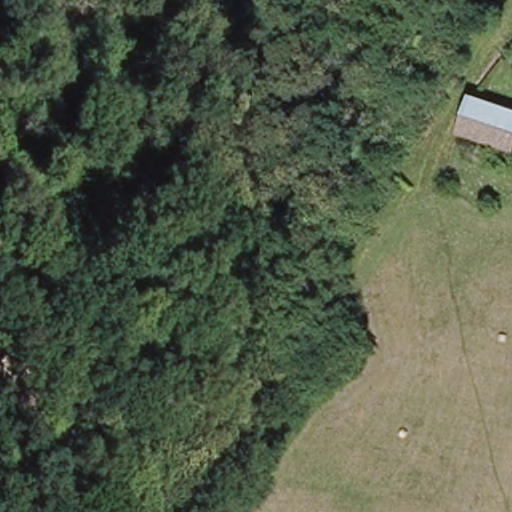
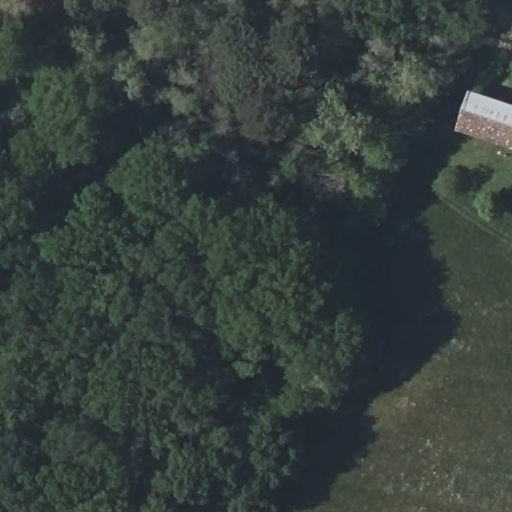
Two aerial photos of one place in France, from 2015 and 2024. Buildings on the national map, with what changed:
unchanged [(468,105),(512,109),(512,143),(465,136),(468,105)]

